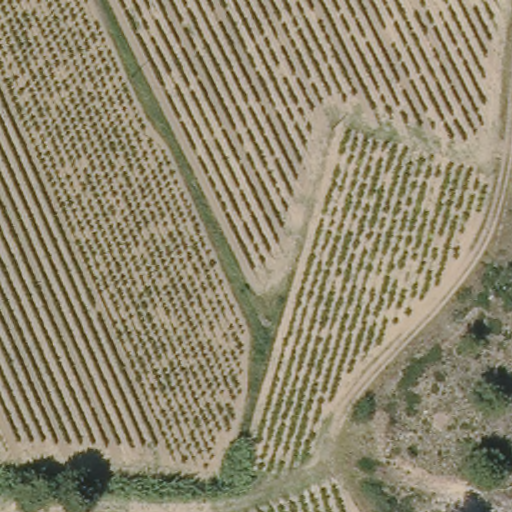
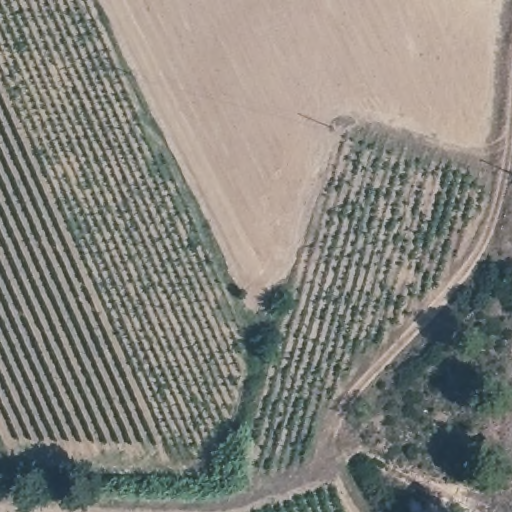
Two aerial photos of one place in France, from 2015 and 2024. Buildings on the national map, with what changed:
[]

